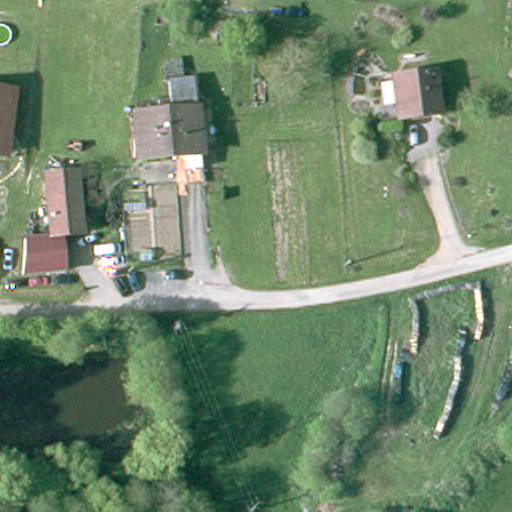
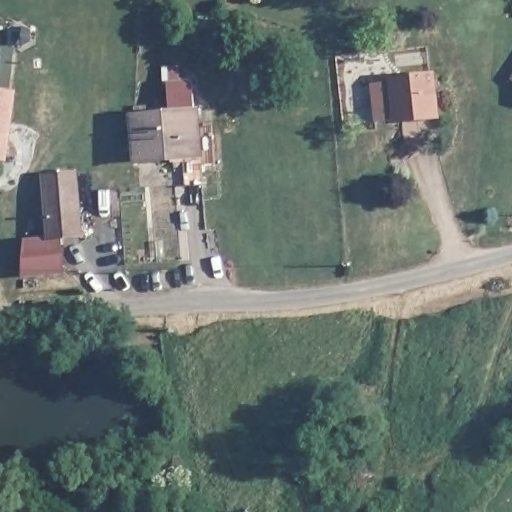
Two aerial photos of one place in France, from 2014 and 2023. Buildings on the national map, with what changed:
unchanged [(431,74),(436,112),(397,118),(391,78),(431,74)]
unchanged [(168,81),(191,76),(209,172),(191,172),(186,149),(138,157),(129,113),(174,106),(168,81)]
unchanged [(3,153),(0,153),(0,85),(6,85),(6,118),(7,153),(3,153)]
unchanged [(84,231),(56,235),(43,171),(73,168),(84,231)]

